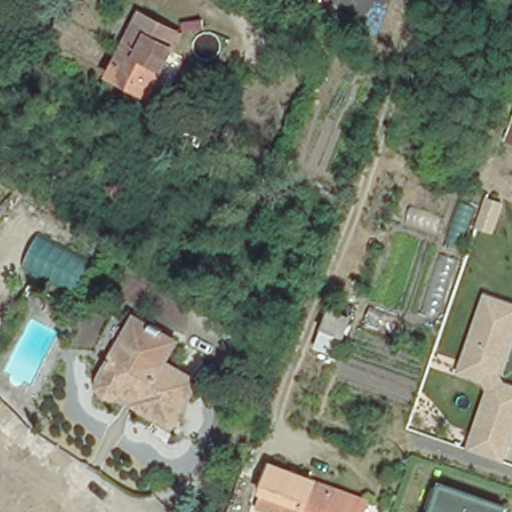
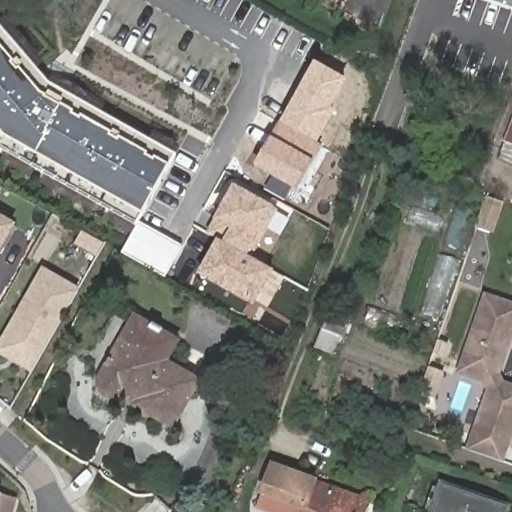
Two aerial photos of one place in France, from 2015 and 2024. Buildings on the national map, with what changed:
new [(512,11),(480,0),(512,0),(512,11)]
demolished [(182,37),(149,101),(109,81),(143,16),(182,37)]
new [(41,80),(171,152),(129,224),(0,144),(0,32),(41,80)]
new [(270,139),(280,122),(315,62),(347,80),(332,108),(336,110),(317,144),(322,147),(313,161),(296,191),(254,168),(270,139)]
unchanged [(512,117),(512,146),(502,142),(512,117)]
new [(216,240),(206,234),(213,221),(233,185),(274,209),(277,211),(252,259),(272,270),(285,278),(268,309),(256,302),(254,308),(197,276),(216,240)]
new [(0,253),(0,216),(16,225),(0,253)]
new [(177,245),(162,275),(122,252),(136,226),(177,245)]
new [(73,287),(27,370),(0,354),(0,330),(37,265),(73,287)]
unchanged [(488,391),(485,385),(457,376),(485,293),(512,303),(512,344),(501,375),(505,383),(512,386),(512,445),(506,462),(468,449),(488,391)]
unchanged [(109,376),(129,343),(139,325),(153,333),(155,328),(168,335),(165,340),(181,350),(171,367),(204,385),(177,432),(139,410),(141,406),(128,398),(126,400),(124,402),(120,402),(116,403),(112,402),(110,400),(107,398),(105,395),(105,391),(104,388),(105,385),(106,382),(109,376)]
demolished [(40,409),(30,425),(22,421),(0,406),(0,383),(40,409)]
unchanged [(305,511),(261,497),(271,471),(314,486),(306,506),(305,511)]
unchanged [(510,508),(509,512),(433,512),(442,485),(510,508)]
unchanged [(366,505),(364,512),(321,512),(321,511),(306,506),(314,486),(366,505)]
new [(0,512),(0,495),(3,495),(19,500),(15,512),(0,512)]

